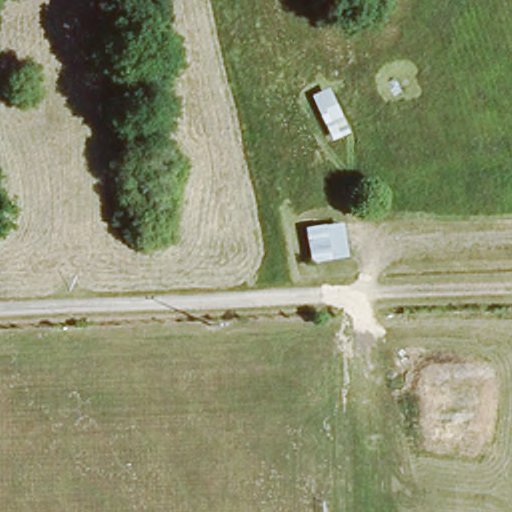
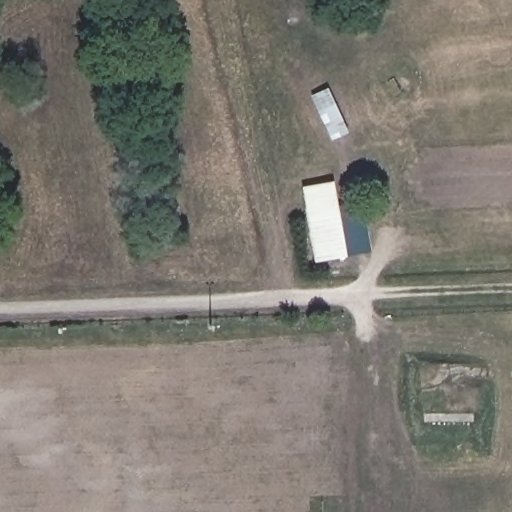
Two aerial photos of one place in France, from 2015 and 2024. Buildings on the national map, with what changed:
unchanged [(327,89),(349,131),(328,139),(307,97),(327,89)]
unchanged [(343,222),(350,256),(311,263),(303,229),(343,222)]

